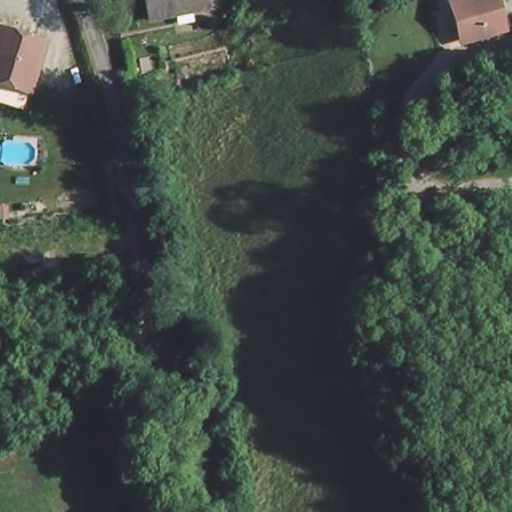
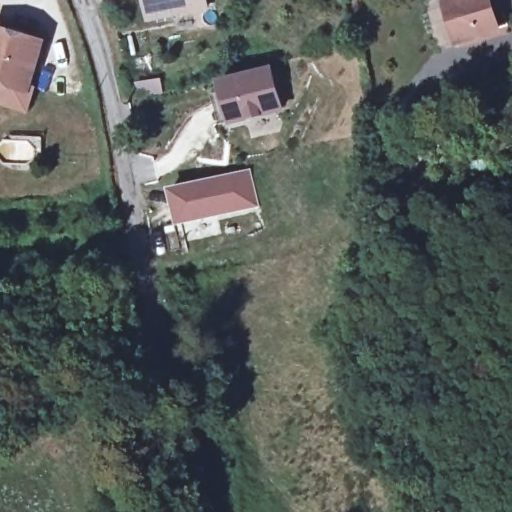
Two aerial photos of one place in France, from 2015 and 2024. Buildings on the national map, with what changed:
unchanged [(203,0),(205,10),(149,20),(145,0),(203,0)]
unchanged [(454,41),(444,0),(498,0),(506,26),(454,41)]
unchanged [(33,85),(30,91),(0,83),(0,23),(48,38),(33,85)]
new [(216,80),(272,66),(286,113),(229,127),(216,80)]
new [(33,85),(36,87),(29,111),(0,104),(0,83),(30,91),(33,85)]
new [(253,168),(261,207),(176,226),(167,188),(253,168)]

